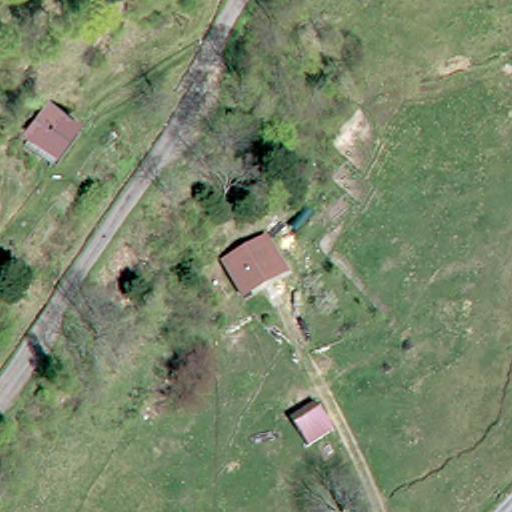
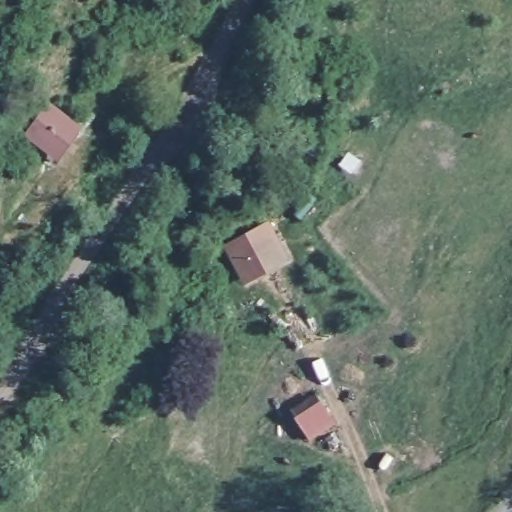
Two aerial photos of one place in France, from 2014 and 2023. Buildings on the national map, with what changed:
unchanged [(54,115),(78,133),(58,161),(33,144),(54,115)]
unchanged [(235,261),(228,249),(267,228),(274,241),(283,259),(245,280),(235,261)]
unchanged [(316,396),(323,407),(298,423),(291,412),(316,396)]

